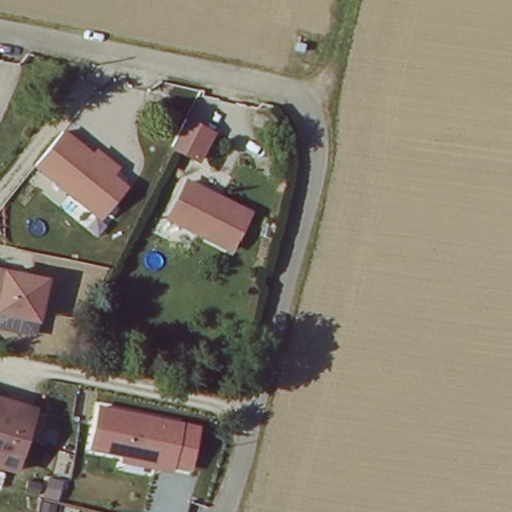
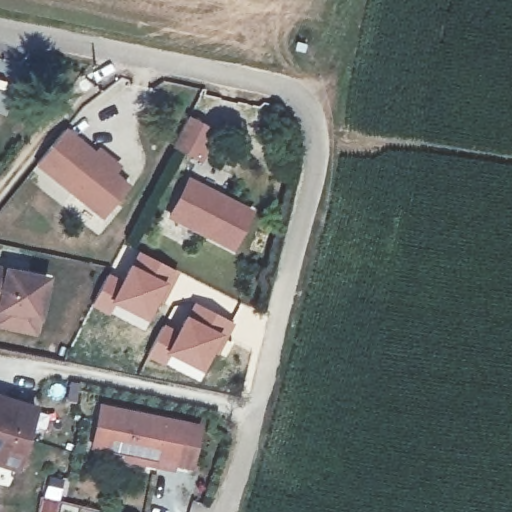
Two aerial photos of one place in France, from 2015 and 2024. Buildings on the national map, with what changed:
unchanged [(211,139),(196,165),(170,151),(184,125),(211,139)]
unchanged [(65,128),(93,152),(98,147),(122,166),(116,175),(131,187),(103,222),(108,226),(98,237),(87,227),(95,216),(34,167),(65,128)]
unchanged [(246,215),(228,250),(166,217),(185,182),(246,215)]
new [(137,250),(176,270),(159,301),(155,300),(144,321),(114,306),(109,316),(91,307),(108,272),(120,278),(137,250)]
unchanged [(0,267),(50,277),(37,336),(0,330),(0,267)]
new [(193,301),(233,322),(218,355),(209,351),(201,374),(169,358),(165,366),(146,358),(163,322),(176,328),(193,301)]
unchanged [(38,412),(0,403),(0,383),(42,392),(38,412)]
unchanged [(0,465),(0,403),(38,412),(24,471),(0,465)]
unchanged [(176,470),(126,464),(128,455),(91,450),(96,405),(184,419),(176,470)]
unchanged [(184,422),(202,425),(194,472),(176,468),(184,422)]

